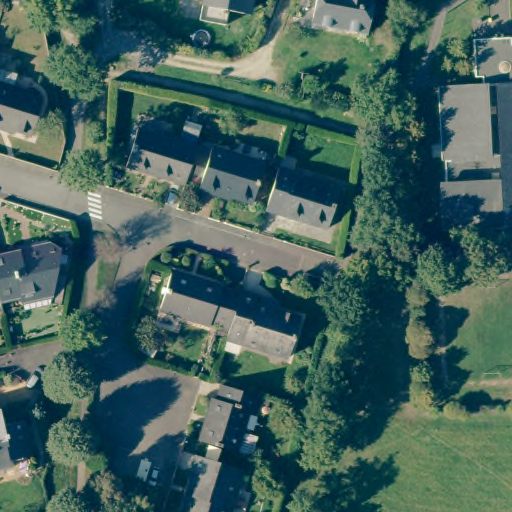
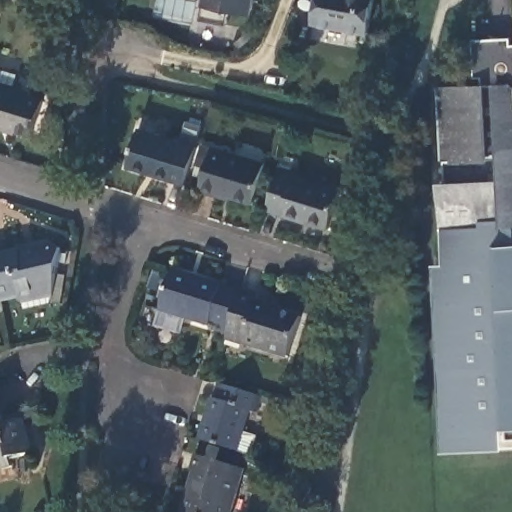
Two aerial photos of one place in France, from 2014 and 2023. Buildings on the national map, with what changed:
unchanged [(227,16),(225,31),(200,27),(205,0),(252,0),(251,6),(249,20),(241,19),(227,16)]
unchanged [(315,29),(320,0),(376,0),(370,37),(315,29)]
unchanged [(503,221),(480,222),(480,228),(443,229),(441,187),(445,187),(441,89),(482,88),(482,79),(475,79),(474,41),(512,39),(512,226),(505,227),(503,221)]
unchanged [(31,96),(45,100),(34,135),(3,125),(2,128),(0,127),(0,67),(20,74),(16,88),(32,93),(31,96)]
unchanged [(124,167),(135,128),(194,146),(182,185),(124,167)]
unchanged [(261,164),(250,203),(216,193),(216,195),(197,189),(210,149),(261,164)]
unchanged [(297,173),(296,175),(341,189),(328,229),(268,209),(280,168),(297,173)]
new [(505,449),(442,453),(431,265),(445,264),(443,229),(480,228),(480,222),(503,221),(505,227),(512,226),(512,428),(504,429),(505,449)]
unchanged [(52,239),(63,245),(55,289),(35,293),(35,289),(2,297),(0,288),(0,251),(52,239)]
unchanged [(207,319),(206,322),(157,306),(170,265),(220,280),(219,284),(236,289),(226,324),(207,319)]
unchanged [(255,291),(252,299),(297,313),(285,353),(239,338),(240,332),(225,327),(226,324),(236,289),(237,286),(255,291)]
unchanged [(210,409),(215,411),(220,394),(257,406),(252,424),(245,422),(233,462),(197,451),(210,409)]
unchanged [(5,408),(9,425),(25,422),(32,455),(11,459),(13,467),(0,470),(0,409),(5,408)]
unchanged [(245,474),(234,512),(184,512),(188,500),(191,501),(198,478),(193,476),(197,461),(245,474)]

